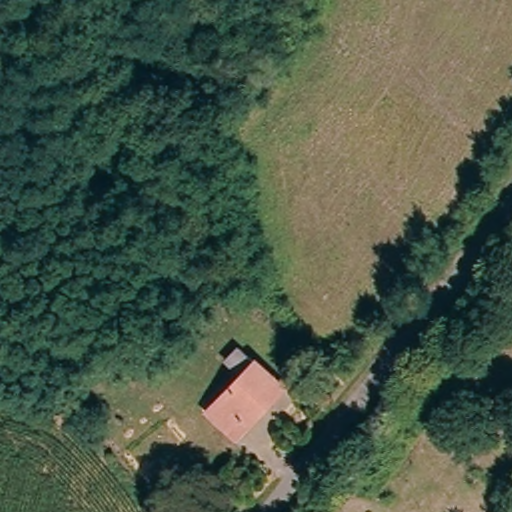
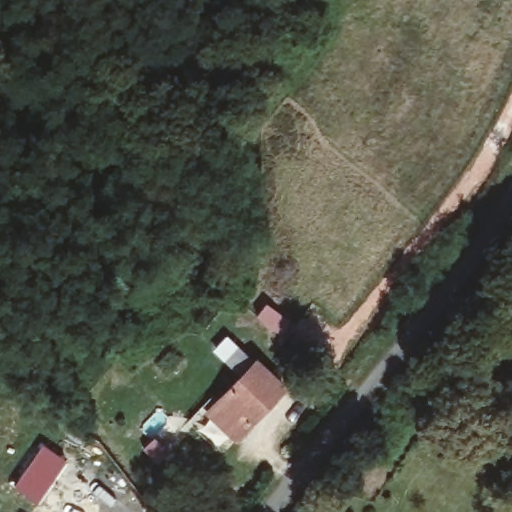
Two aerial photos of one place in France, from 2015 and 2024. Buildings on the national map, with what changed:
unchanged [(227,433),(209,415),(255,364),(281,390),(245,430),(235,441),(227,433)]
new [(42,443),(67,461),(37,503),(13,486),(42,443)]

